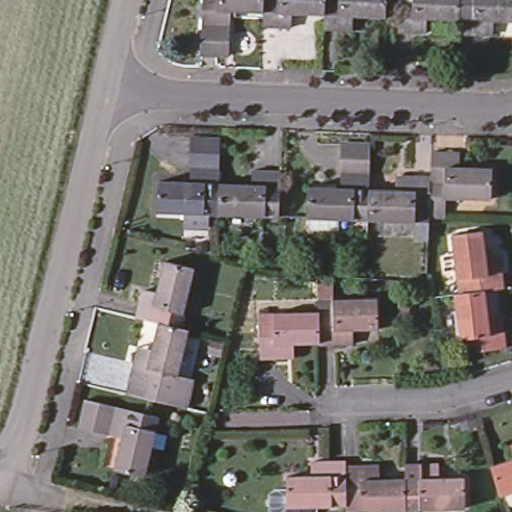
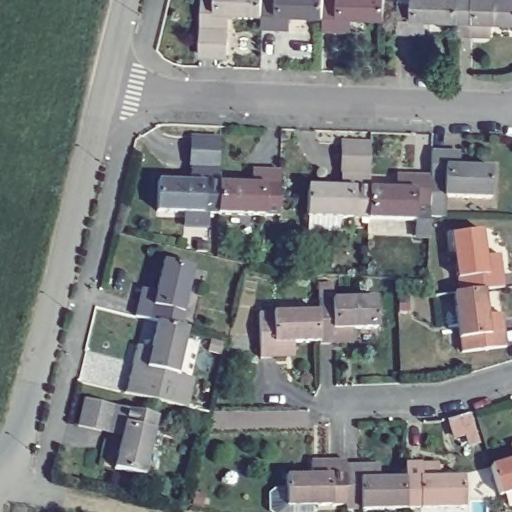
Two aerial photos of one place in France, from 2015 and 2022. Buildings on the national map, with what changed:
unchanged [(226,58),(198,57),(200,0),(323,0),(322,16),(286,15),(285,30),(259,30),(260,15),(226,15),(226,58)]
unchanged [(348,17),(347,32),(322,31),(322,16),(323,0),(385,0),(384,18),(348,17)]
unchanged [(458,21),(424,19),(423,34),(396,33),(397,0),(458,0),(458,21)]
unchanged [(457,35),(458,21),(458,0),(512,0),(512,22),(495,21),(495,36),(482,36),(457,35)]
unchanged [(364,230),(304,228),(306,195),(339,196),(339,183),(338,183),(338,168),(339,152),(367,153),(366,169),(366,184),(366,198),(364,230)]
unchanged [(458,162),(458,177),(490,178),(489,211),(444,209),(443,227),(427,227),(429,187),(429,161),(458,162)]
unchanged [(159,218),(161,187),(196,189),(196,174),(221,175),(221,190),(219,221),(159,218)]
unchanged [(219,221),(221,190),(258,191),(259,176),(284,177),(282,223),(219,221)]
unchanged [(427,227),(427,233),(364,230),(366,198),(401,199),(402,186),(429,187),(427,227)]
unchanged [(454,235),(483,231),(487,257),(500,255),(505,287),(486,290),(463,293),(454,235)]
unchanged [(158,322),(135,316),(141,289),(156,292),(164,258),(196,264),(180,327),(158,322)]
unchanged [(463,293),(486,290),(489,316),(506,314),(512,348),(465,354),(457,294),(463,293)]
unchanged [(321,343),(320,313),(320,301),(379,301),(379,332),(354,333),(354,346),(321,346),(321,343)]
unchanged [(321,343),(294,344),(294,359),(259,359),(259,314),(320,313),(321,343)]
unchanged [(171,405),(126,394),(129,379),(136,352),(138,342),(152,346),(158,322),(180,327),(188,329),(174,389),(189,393),(186,408),(171,405)]
unchanged [(156,422),(142,483),(112,476),(120,443),(76,432),(83,405),(156,422)]
unchanged [(507,449),(512,447),(512,494),(496,500),(487,470),(511,463),(507,449)]
unchanged [(274,489),(286,489),(286,477),(313,476),(313,460),(346,459),(346,464),(347,510),(318,511),(318,512),(269,512),(269,494),(274,489)]
unchanged [(346,464),(379,463),(379,478),(407,477),(408,512),(347,512),(347,510),(346,464)]
unchanged [(439,481),(466,480),(467,511),(428,512),(408,512),(407,477),(407,468),(439,467),(439,481)]

